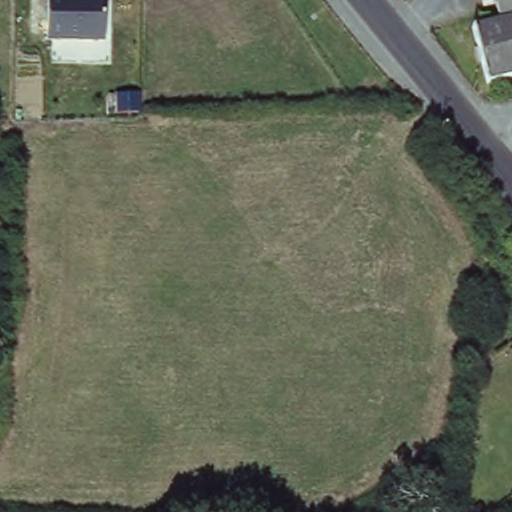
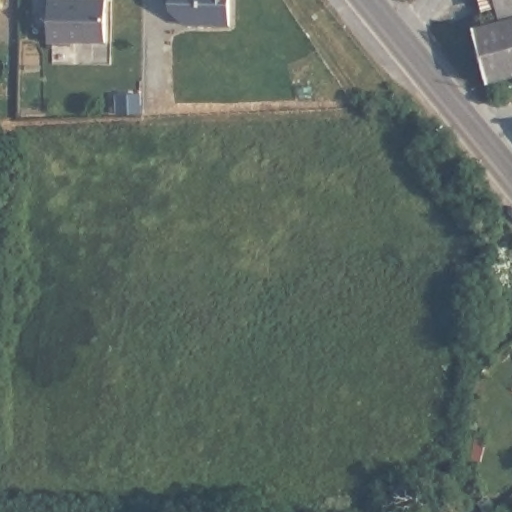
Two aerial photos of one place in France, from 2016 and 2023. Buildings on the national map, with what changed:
unchanged [(102,0),(101,42),(48,43),(49,0),(102,0)]
new [(183,25),(169,11),(168,0),(228,0),(228,26),(183,25)]
unchanged [(471,24),(499,17),(495,0),(512,0),(512,71),(485,78),(471,24)]
new [(117,93),(139,93),(139,116),(117,116),(117,93)]

